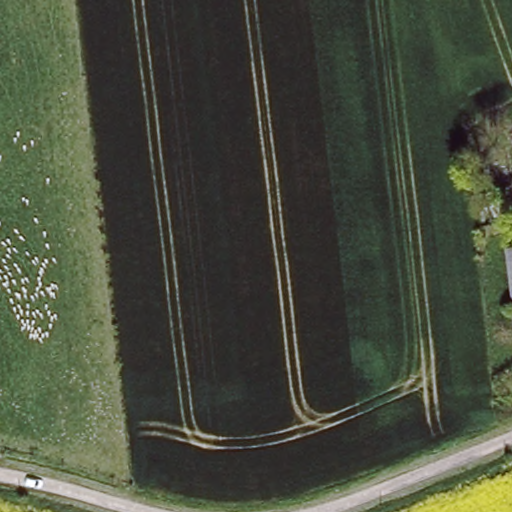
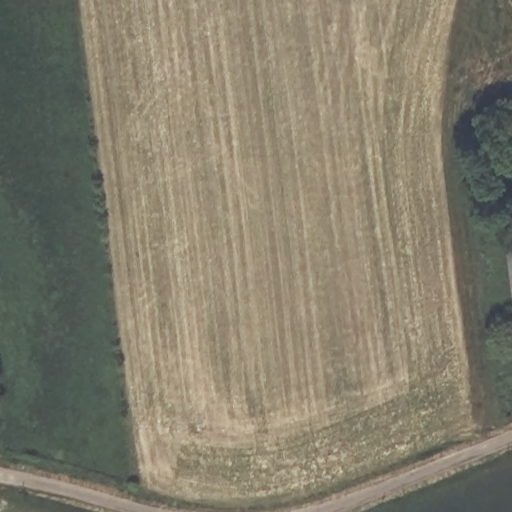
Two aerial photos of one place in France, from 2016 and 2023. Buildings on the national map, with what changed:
unchanged [(512,243),(512,322),(503,245),(512,243)]

